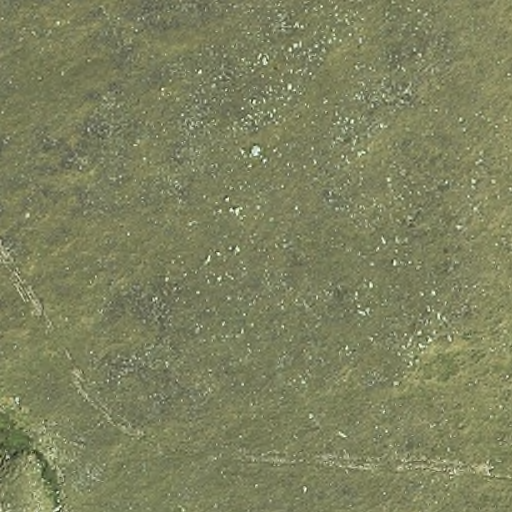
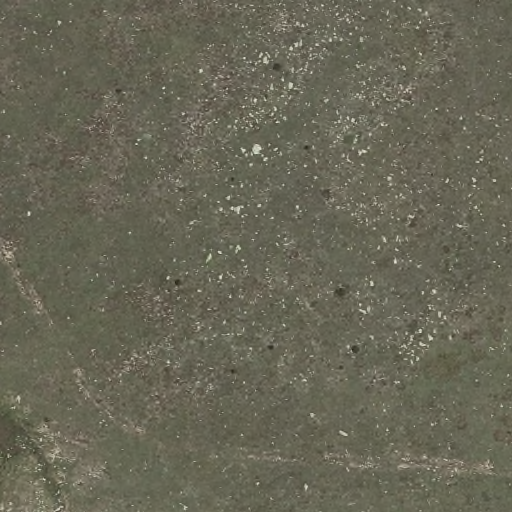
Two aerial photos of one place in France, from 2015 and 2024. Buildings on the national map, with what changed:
[]

